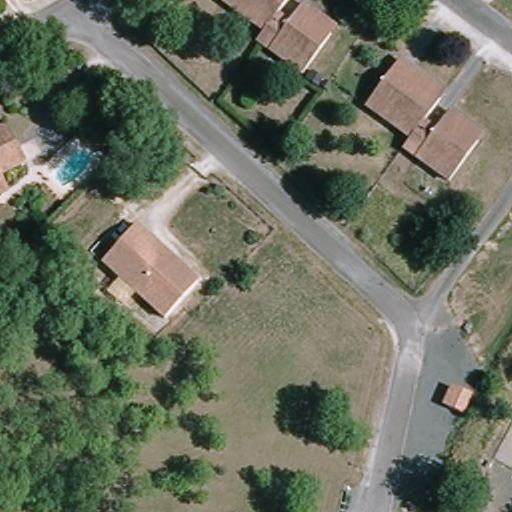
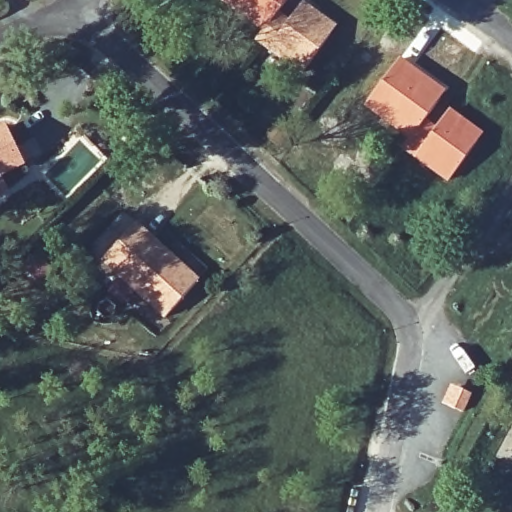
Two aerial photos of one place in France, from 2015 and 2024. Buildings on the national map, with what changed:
unchanged [(253,43),(261,34),(218,0),(286,0),(273,16),(283,25),(299,8),(318,23),(314,30),(327,41),(299,79),(253,43)]
unchanged [(418,80),(415,89),(432,103),(420,124),(432,135),(446,116),(458,128),(455,133),(470,146),(441,185),(399,153),(404,143),(360,106),(396,61),(418,80)]
unchanged [(0,176),(0,127),(1,126),(21,166),(0,176)]
unchanged [(108,258),(140,222),(201,277),(169,313),(108,258)]

